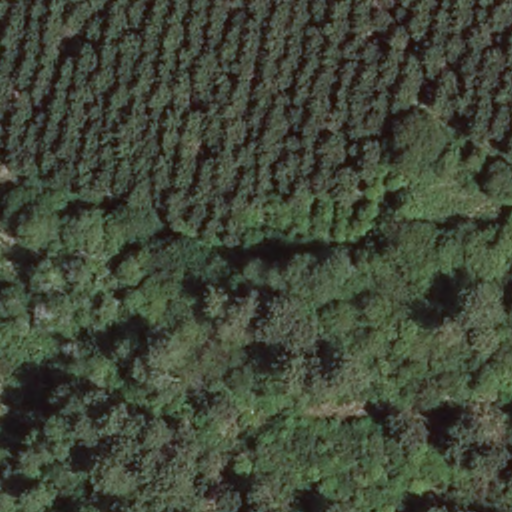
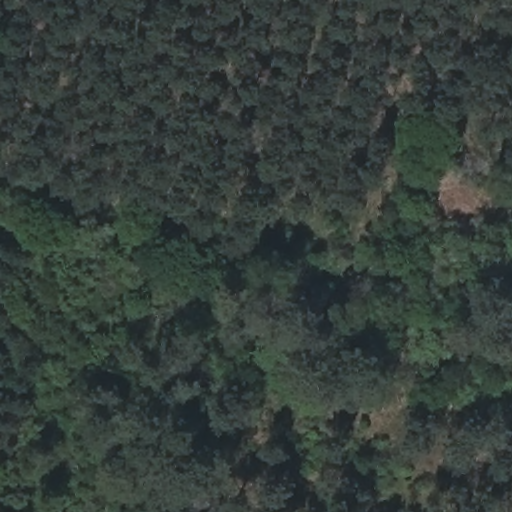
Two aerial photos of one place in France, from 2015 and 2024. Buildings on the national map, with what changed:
[]

